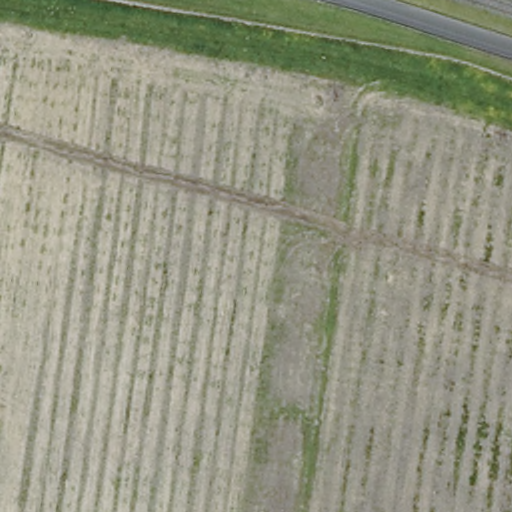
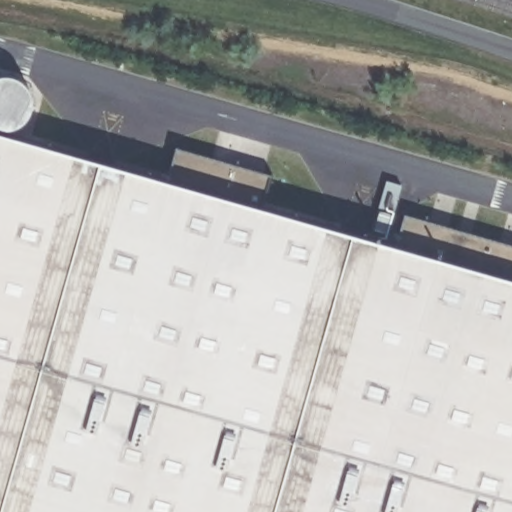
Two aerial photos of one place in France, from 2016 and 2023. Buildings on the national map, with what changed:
new [(0,131),(9,133),(512,277),(512,512),(0,512),(0,131)]

